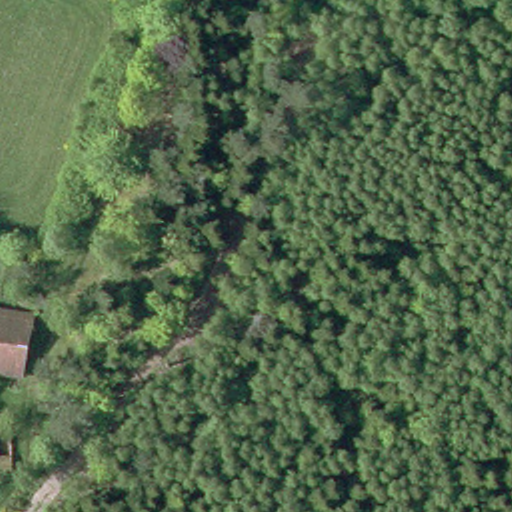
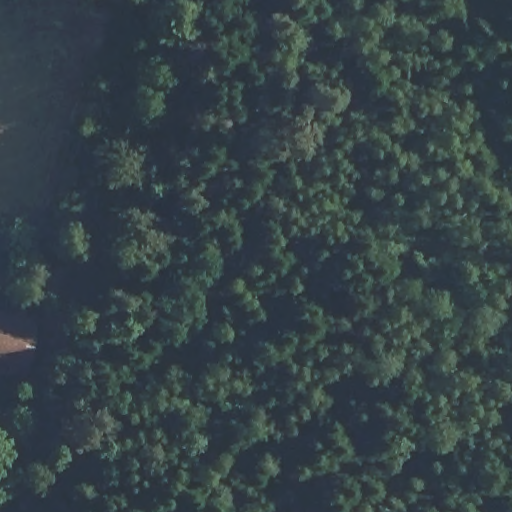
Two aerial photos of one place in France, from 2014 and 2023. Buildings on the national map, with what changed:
unchanged [(0,380),(0,317),(30,323),(16,384),(0,380)]
unchanged [(0,472),(0,443),(3,443),(3,472),(0,472)]

